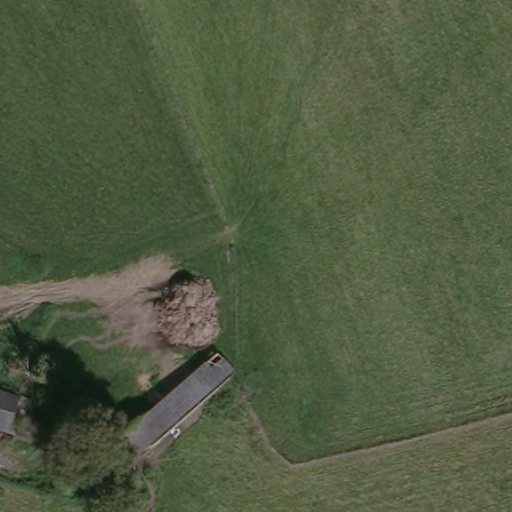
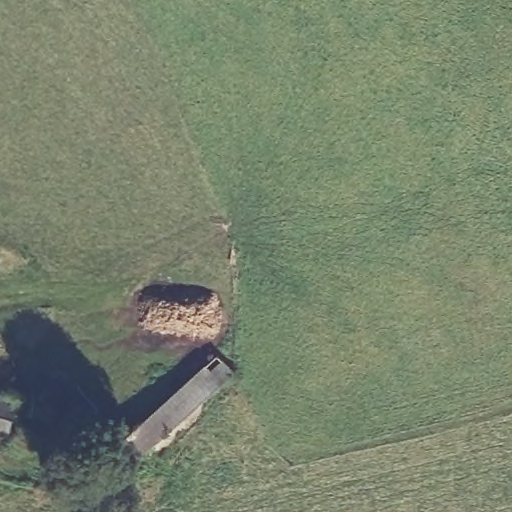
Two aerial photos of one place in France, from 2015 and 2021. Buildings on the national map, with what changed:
unchanged [(241,370),(105,485),(92,470),(160,412),(228,355),(241,370)]
unchanged [(28,443),(0,434),(0,391),(40,403),(28,443)]

